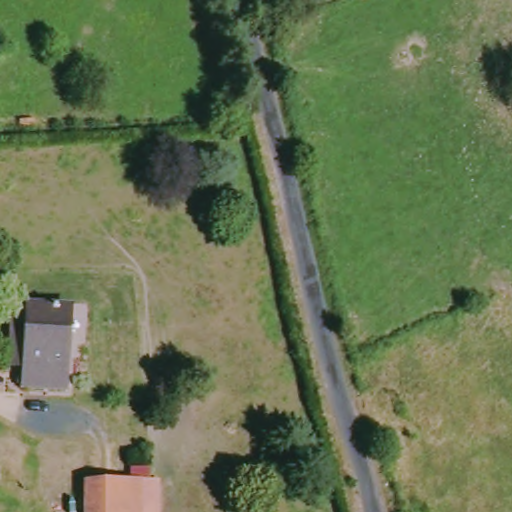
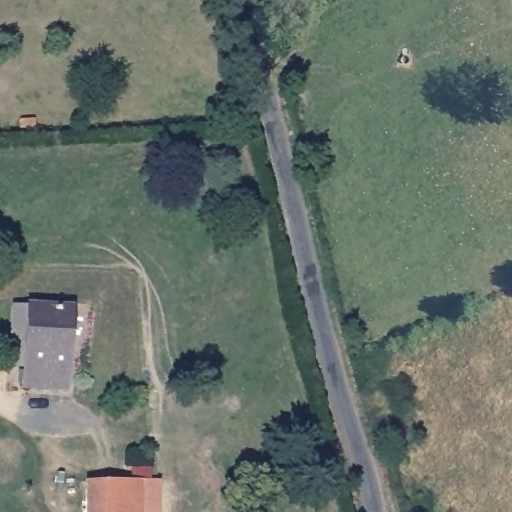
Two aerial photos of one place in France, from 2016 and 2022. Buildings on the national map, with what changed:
unchanged [(72,393),(30,392),(31,377),(16,376),(18,313),(33,313),(75,315),(72,393)]
unchanged [(150,482),(150,512),(80,512),(80,481),(150,482)]

